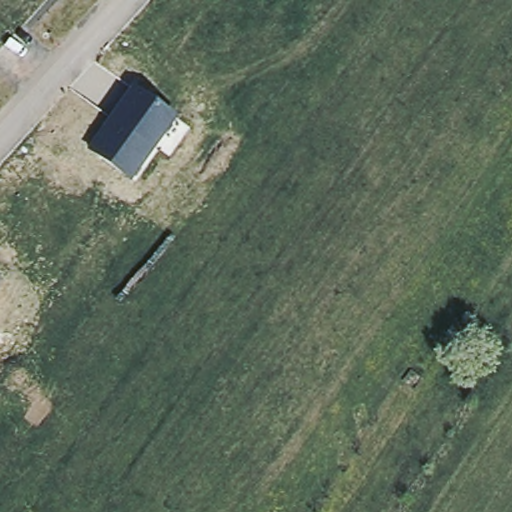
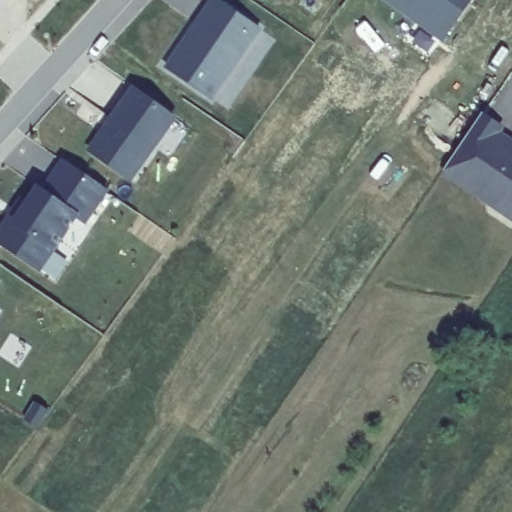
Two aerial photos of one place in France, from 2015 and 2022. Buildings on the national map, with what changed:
new [(219,0),(260,29),(212,100),(168,69),(215,0),(219,0)]
unchanged [(131,184),(87,151),(130,87),(178,120),(131,184)]
new [(502,127),(498,133),(512,143),(512,218),(497,207),(444,171),(447,167),(483,115),(502,127)]
new [(110,190),(85,226),(77,219),(55,251),(41,272),(0,245),(0,227),(25,191),(30,195),(37,185),(43,189),(62,158),(110,190)]

